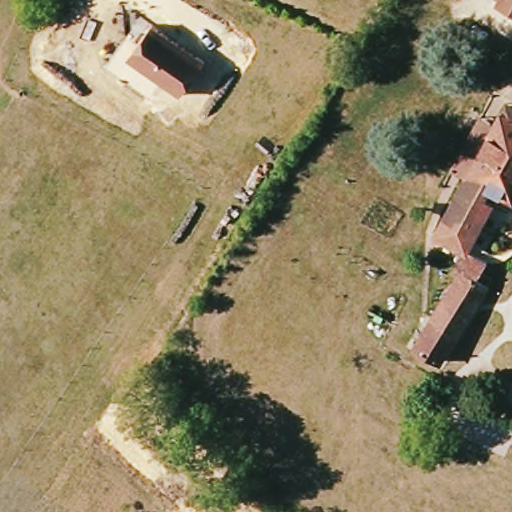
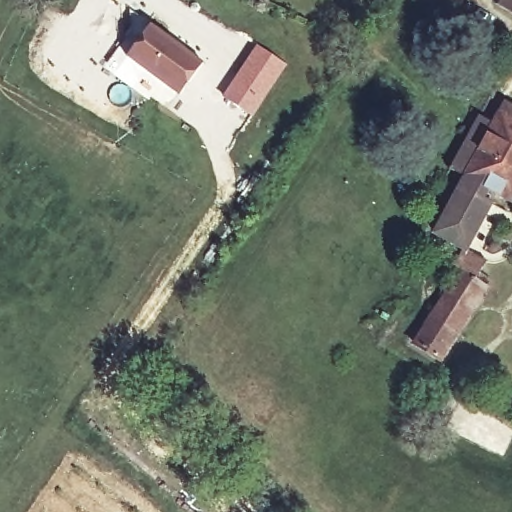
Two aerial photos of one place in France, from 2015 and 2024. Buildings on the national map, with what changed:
unchanged [(498,7),(502,2),(498,0),(512,0),(512,15),(498,7)]
unchanged [(181,95),(128,58),(152,26),(204,64),(181,95)]
new [(257,48),(283,65),(250,117),(223,100),(257,48)]
unchanged [(462,251),(435,234),(466,178),(453,170),(482,119),(495,125),(502,113),(510,117),(512,114),(512,208),(510,210),(495,204),(468,250),(487,262),(480,272),(490,280),(487,287),(463,270),(459,276),(450,270),(462,251)]
unchanged [(472,308),(462,323),(439,308),(459,276),(463,270),(487,287),(472,308)]
unchanged [(438,362),(415,347),(439,308),(462,323),(438,362)]

